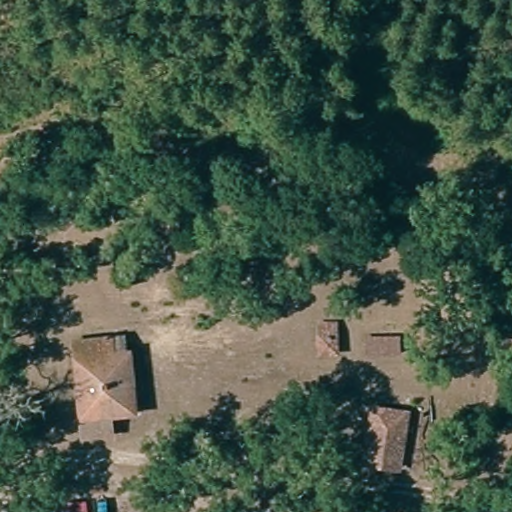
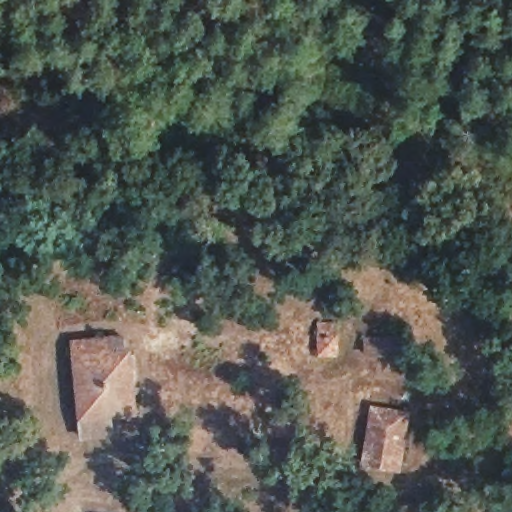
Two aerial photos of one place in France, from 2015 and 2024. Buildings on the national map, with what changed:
unchanged [(333,340),(315,340),(314,306),(332,307),(333,340)]
unchanged [(405,325),(403,342),(363,340),(365,325),(405,325)]
unchanged [(103,327),(104,340),(126,339),(135,398),(103,401),(104,424),(74,427),(67,330),(103,327)]
unchanged [(362,456),(367,414),(407,419),(398,474),(388,472),(361,466),(362,456)]

